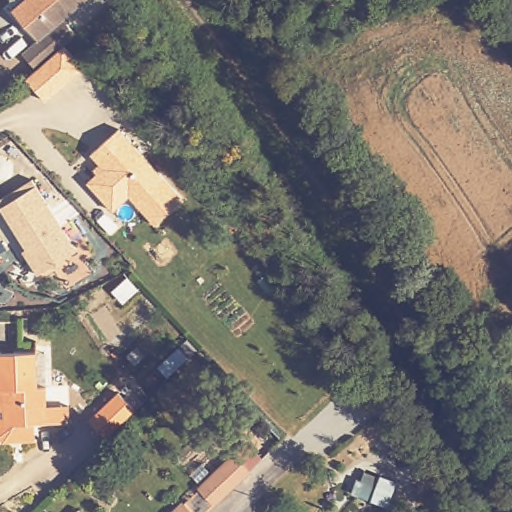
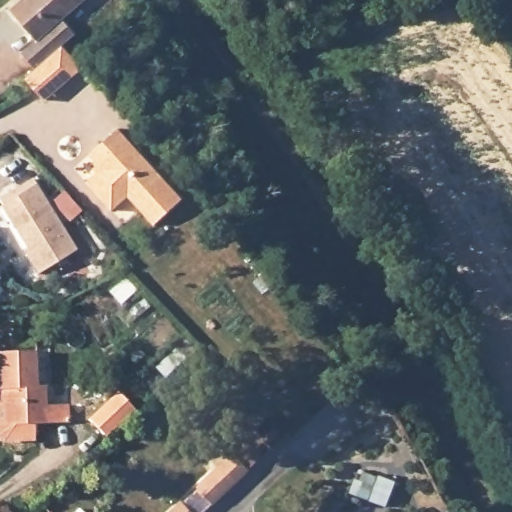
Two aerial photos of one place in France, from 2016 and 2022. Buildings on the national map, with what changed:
unchanged [(25,53),(39,40),(16,12),(30,0),(91,0),(66,21),(77,34),(60,46),(32,67),(25,56),(25,53)]
unchanged [(98,170),(104,165),(95,154),(124,130),(184,203),(155,227),(131,197),(114,211),(90,182),(100,174),(98,170)]
unchanged [(34,179),(74,251),(35,274),(24,255),(28,253),(1,206),(4,205),(0,199),(34,179)]
unchanged [(1,392),(0,391),(0,353),(34,353),(34,390),(43,391),(43,405),(68,405),(68,427),(43,426),(30,426),(31,445),(0,444),(0,426),(1,426),(1,392)]
unchanged [(119,390),(133,407),(103,434),(88,417),(119,390)]
unchanged [(228,464),(247,449),(260,464),(242,480),(224,496),(209,480),(228,464)]
unchanged [(399,479),(392,510),(346,500),(354,472),(399,479)]
unchanged [(212,507),(205,512),(171,512),(197,489),(212,507)]

